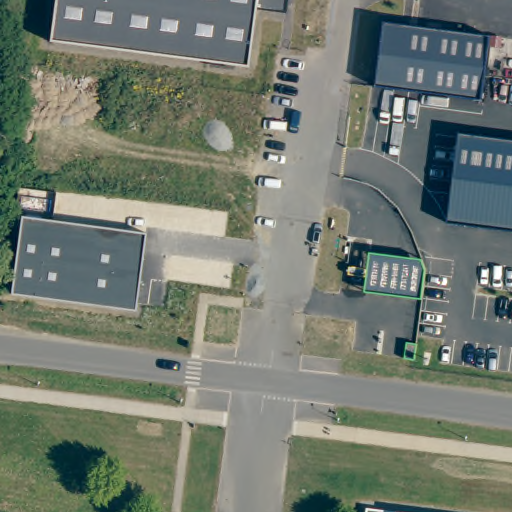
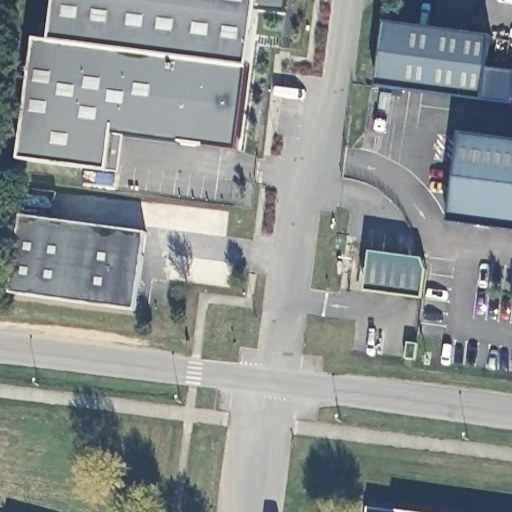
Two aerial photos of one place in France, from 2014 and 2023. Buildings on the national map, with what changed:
unchanged [(286,0),(284,12),(255,9),(248,67),(50,41),(56,0),(286,0)]
unchanged [(387,24),(490,38),(481,100),(378,85),(387,24)]
new [(248,67),(238,151),(124,136),(120,173),(105,172),(21,161),(35,39),(50,41),(248,67)]
unchanged [(460,136),(512,142),(512,231),(448,223),(460,136)]
unchanged [(22,218),(145,235),(135,311),(12,295),(22,218)]
unchanged [(371,254),(421,260),(426,273),(422,300),(365,293),(371,254)]
unchanged [(366,508),(391,512),(366,512),(366,508)]

